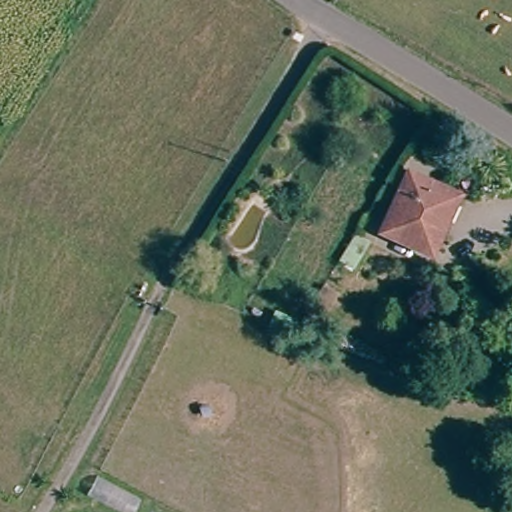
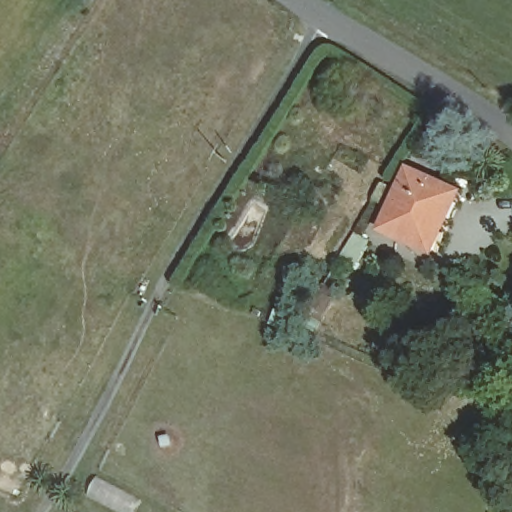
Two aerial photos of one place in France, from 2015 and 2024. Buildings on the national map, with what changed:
unchanged [(435,230),(443,233),(434,252),(385,231),(411,175),(450,191),(435,230)]

